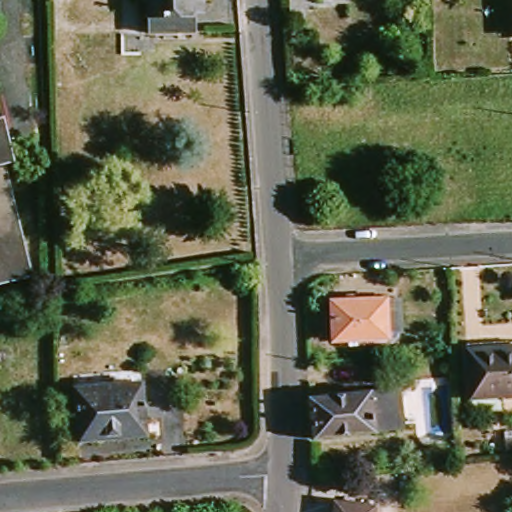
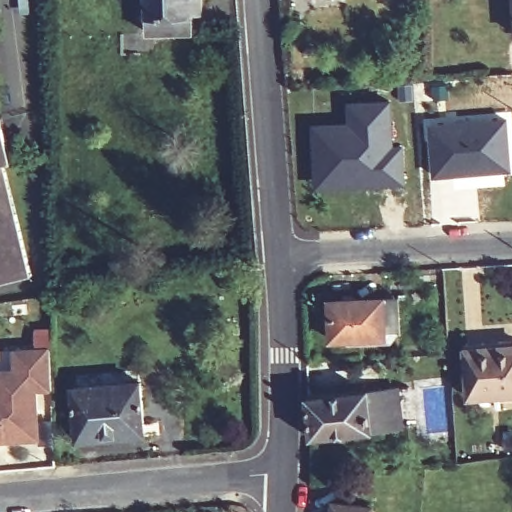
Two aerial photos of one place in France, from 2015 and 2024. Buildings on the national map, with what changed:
unchanged [(154,33),(153,10),(153,0),(196,0),(195,33),(154,33)]
new [(392,101),(394,146),(405,144),(407,185),(317,191),(312,126),(349,123),(348,103),(392,101)]
unchanged [(1,118),(12,165),(4,167),(32,278),(0,286),(0,118),(1,118)]
new [(512,172),(434,179),(430,125),(509,118),(512,155),(512,172)]
unchanged [(335,349),(335,343),(325,344),(322,305),(375,302),(390,301),(391,332),(385,338),(378,346),(335,349)]
unchanged [(468,357),(467,352),(512,350),(512,409),(500,410),(500,405),(470,406),(468,357)]
new [(16,372),(15,352),(36,352),(37,442),(0,442),(0,372),(16,372)]
unchanged [(145,436),(77,441),(74,389),(140,384),(145,436)]
unchanged [(410,389),(412,402),(397,404),(401,436),(312,447),(309,407),(405,396),(404,389),(410,389)]
unchanged [(371,512),(333,512),(333,506),(372,509),(371,512)]

